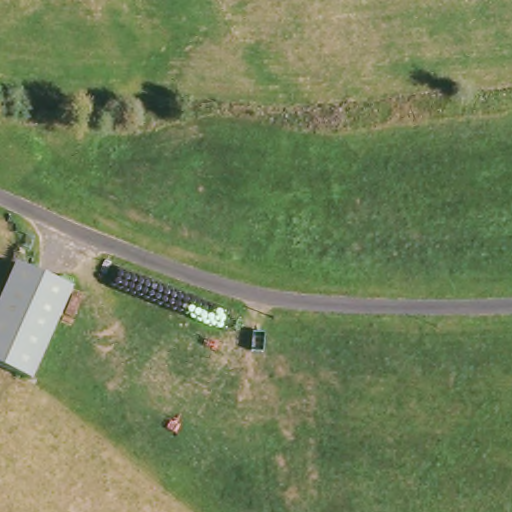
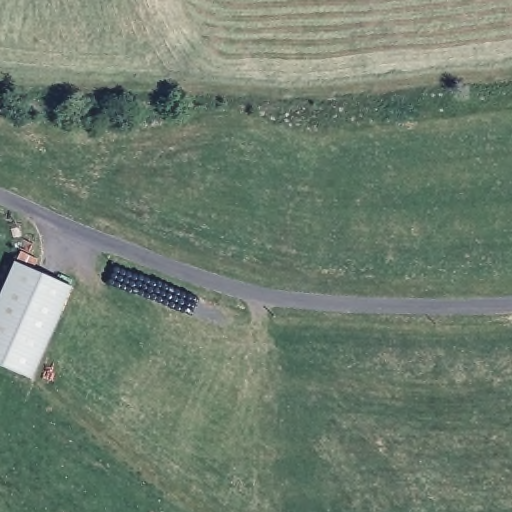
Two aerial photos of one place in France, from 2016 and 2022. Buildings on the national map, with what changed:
unchanged [(39,381),(0,365),(0,317),(19,267),(73,290),(39,381)]

